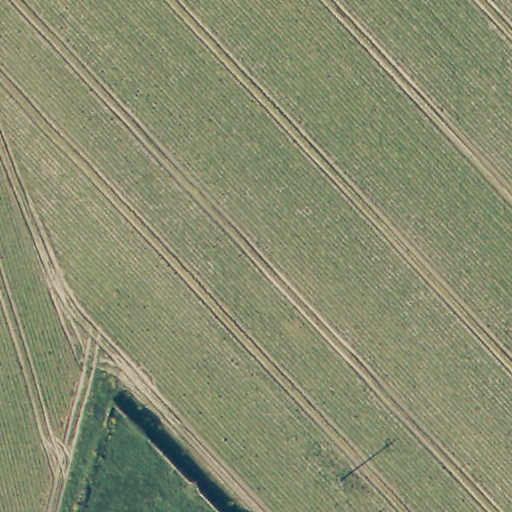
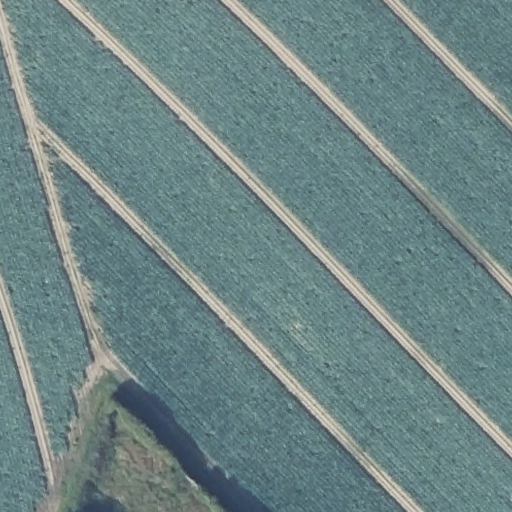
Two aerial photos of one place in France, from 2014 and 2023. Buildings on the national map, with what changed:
[]

